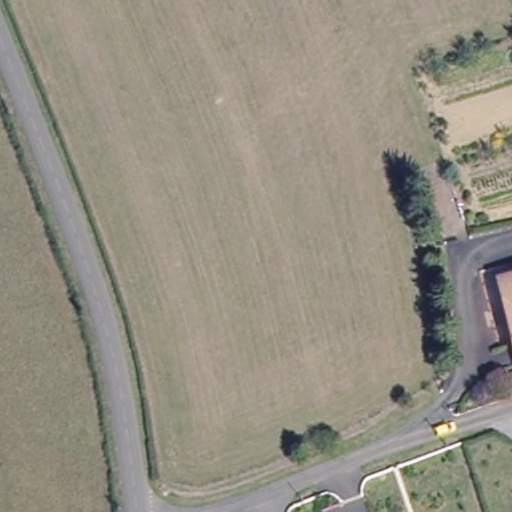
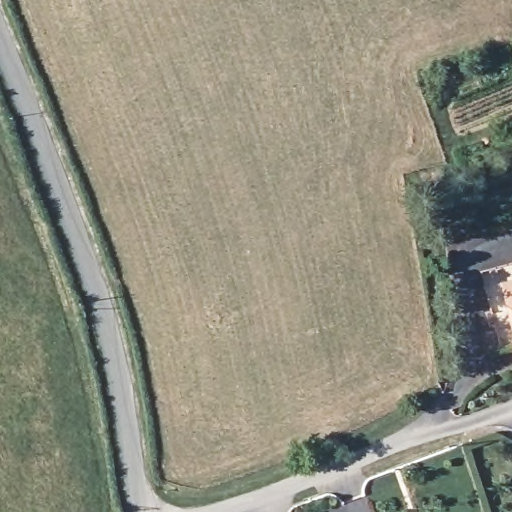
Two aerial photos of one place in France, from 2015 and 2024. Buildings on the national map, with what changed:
unchanged [(512,280),(512,340),(494,286),(512,280)]

